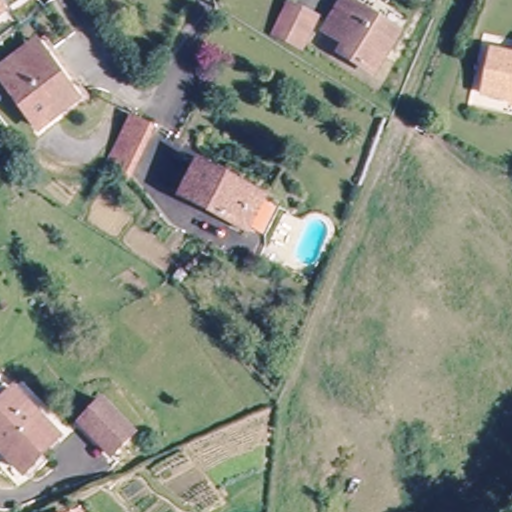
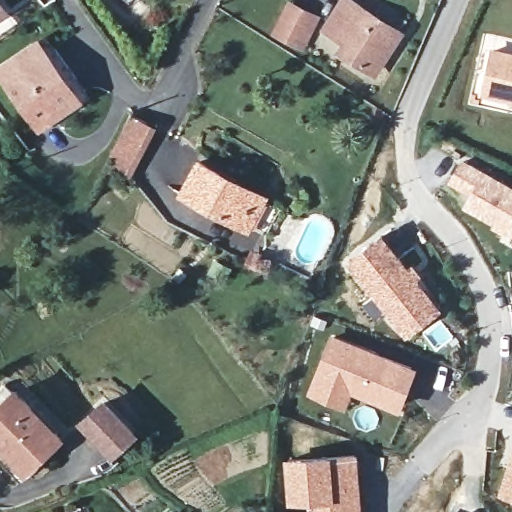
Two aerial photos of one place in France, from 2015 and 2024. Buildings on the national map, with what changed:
unchanged [(286,0),(288,0),(322,15),(304,52),(270,34),(286,0)]
unchanged [(377,70),(347,50),(352,42),(326,26),(342,0),(352,0),(401,30),(388,52),(377,70)]
unchanged [(0,14),(0,9),(3,12),(0,14)]
unchanged [(0,72),(38,45),(76,102),(36,130),(0,79),(0,72)]
unchanged [(484,93),(495,52),(512,57),(512,101),(484,93)]
unchanged [(126,179),(104,167),(130,112),(153,123),(126,179)]
new [(512,184),(512,235),(461,208),(470,193),(449,183),(463,155),(512,184)]
unchanged [(247,230),(237,225),(182,195),(200,161),(255,190),(265,195),(247,230)]
new [(442,310),(405,340),(346,261),(382,236),(442,310)]
new [(417,365),(401,410),(352,394),(345,410),(307,394),(333,333),(417,365)]
unchanged [(0,450),(0,402),(13,390),(58,438),(21,472),(0,450)]
unchanged [(105,450),(76,417),(100,395),(130,428),(105,450)]
new [(364,512),(314,512),(313,501),(287,503),(283,458),(359,452),(364,512)]
new [(499,497),(512,453),(512,501),(499,497)]

